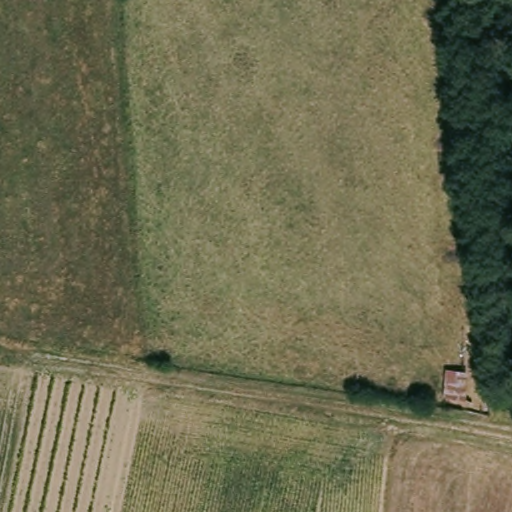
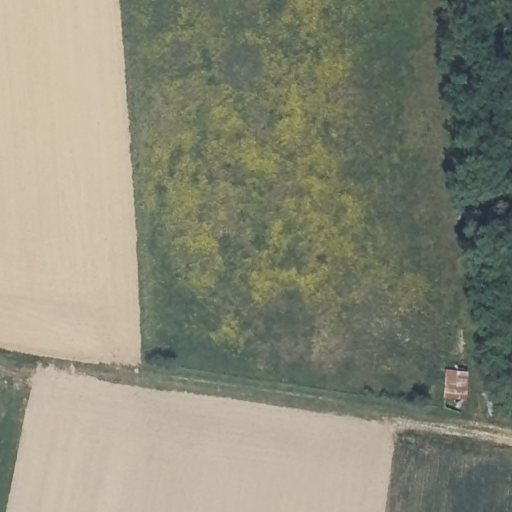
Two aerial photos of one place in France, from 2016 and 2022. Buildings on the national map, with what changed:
unchanged [(444,367),(469,368),(468,399),(441,399),(444,367)]

